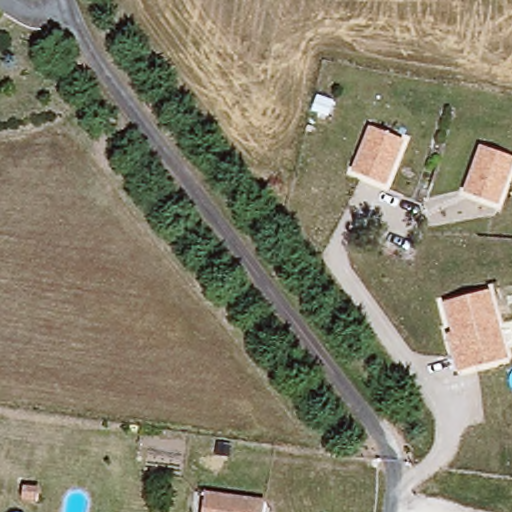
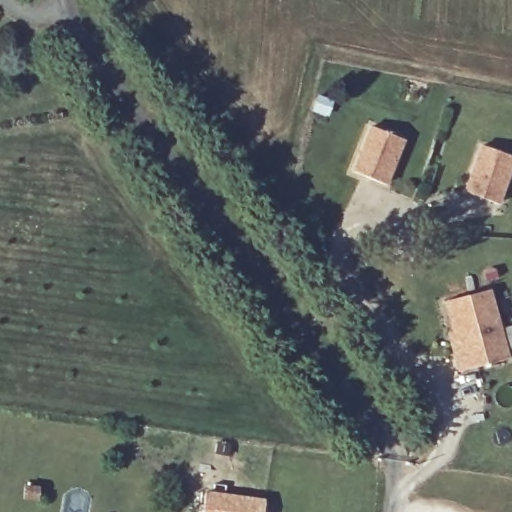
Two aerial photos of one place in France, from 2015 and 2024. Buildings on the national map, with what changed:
unchanged [(368,127),(403,142),(385,188),(351,172),(368,127)]
unchanged [(512,160),(512,167),(496,207),(464,193),(480,147),(512,160)]
unchanged [(488,294),(512,361),(458,375),(445,336),(450,333),(442,302),(488,294)]
unchanged [(265,500),(264,512),(202,512),(205,491),(265,500)]

